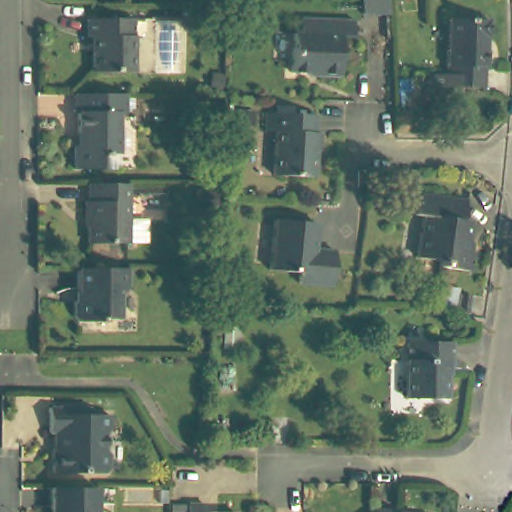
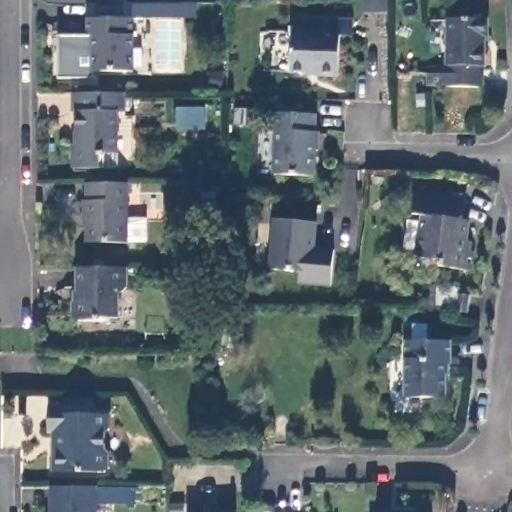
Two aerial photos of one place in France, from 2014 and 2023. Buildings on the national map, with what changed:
unchanged [(87,19),(87,5),(198,2),(197,19),(132,19),(87,19)]
unchanged [(422,69),(447,69),(447,15),(488,16),(488,35),(485,36),(485,63),(483,64),(483,83),(447,83),(423,83),(422,69)]
unchanged [(300,18),(326,19),(354,20),(353,37),(339,36),(338,76),(318,76),(318,74),(291,72),(292,33),(300,33),(300,18)]
unchanged [(88,37),(87,19),(132,19),(132,72),(92,71),(92,37),(88,37)]
new [(92,37),(92,71),(94,71),(94,78),(59,78),(59,37),(88,37),(92,37)]
unchanged [(124,93),(124,113),(117,113),(118,154),(105,154),(105,156),(98,156),(98,169),(72,169),(72,146),(75,146),(76,113),(72,113),(72,92),(124,93)]
unchanged [(315,115),(314,132),(318,132),(318,151),(314,152),(313,176),(275,174),(276,132),(264,132),(265,113),(315,115)]
unchanged [(148,243),(126,243),(86,243),(86,220),(84,220),(84,202),(86,202),(87,183),(126,183),(126,215),(126,219),(148,219),(148,243)]
unchanged [(467,199),(464,217),(471,219),(468,238),(464,238),(464,247),(473,249),(470,267),(439,262),(440,257),(418,253),(424,211),(415,210),(418,191),(467,199)]
unchanged [(314,248),(334,250),(330,285),(298,282),(299,271),(269,268),(275,218),(317,223),(314,248)]
unchanged [(127,268),(127,289),(118,293),(118,319),(101,318),(101,322),(78,321),(73,318),(73,303),(77,300),(77,268),(127,268)]
unchanged [(454,314),(455,308),(457,295),(470,297),(468,315),(454,314)]
unchanged [(451,344),(450,364),(445,364),(443,400),(404,399),(406,343),(451,344)]
unchanged [(88,405),(88,411),(106,411),(106,429),(103,432),(103,446),(107,451),(108,466),(102,471),(50,470),(50,446),(54,445),(54,430),(45,429),(45,404),(88,405)]
unchanged [(93,512),(49,512),(49,486),(93,486),(93,512)]
unchanged [(203,511),(214,512),(186,512),(186,501),(203,502),(203,511)]
unchanged [(406,512),(371,512),(371,507),(387,509),(390,511),(406,512)]

